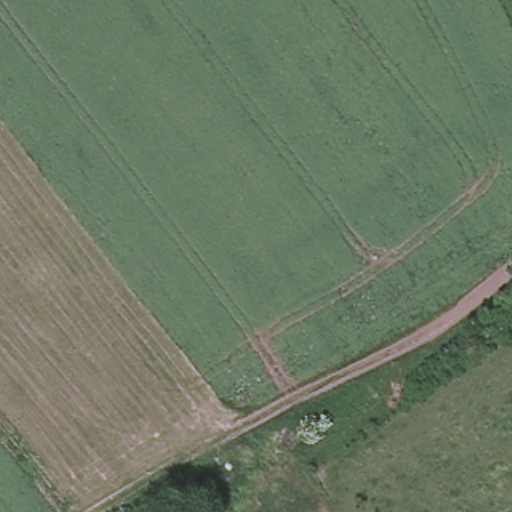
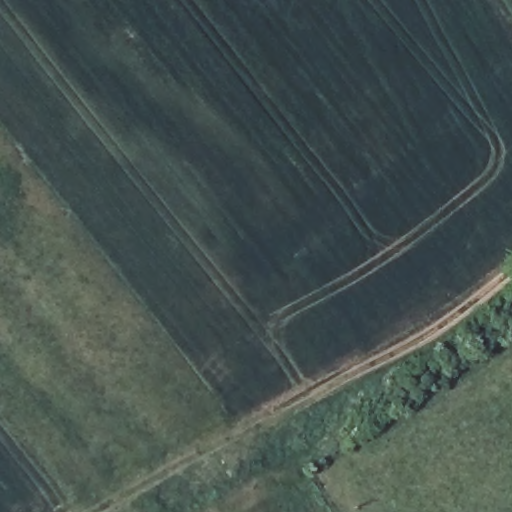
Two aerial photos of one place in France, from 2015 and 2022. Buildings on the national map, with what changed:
[]

